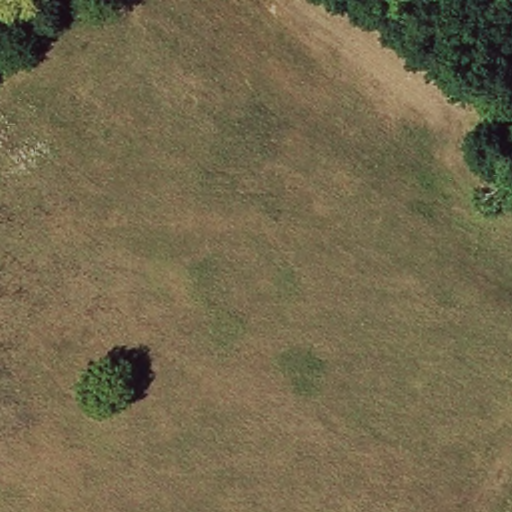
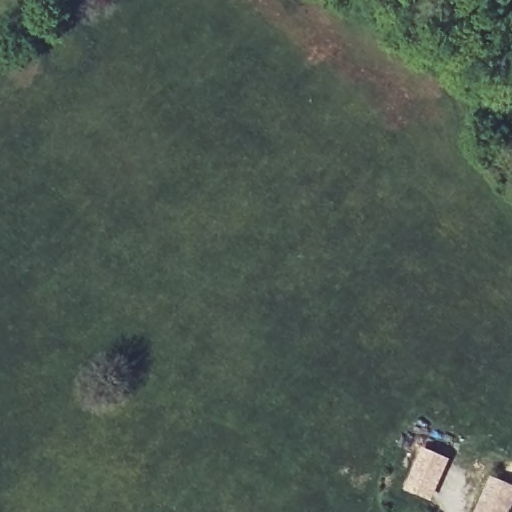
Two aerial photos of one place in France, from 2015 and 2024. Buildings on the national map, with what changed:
new [(430,500),(402,488),(420,446),(448,459),(430,500)]
new [(512,489),(512,499),(506,512),(476,512),(490,480),(512,489)]

